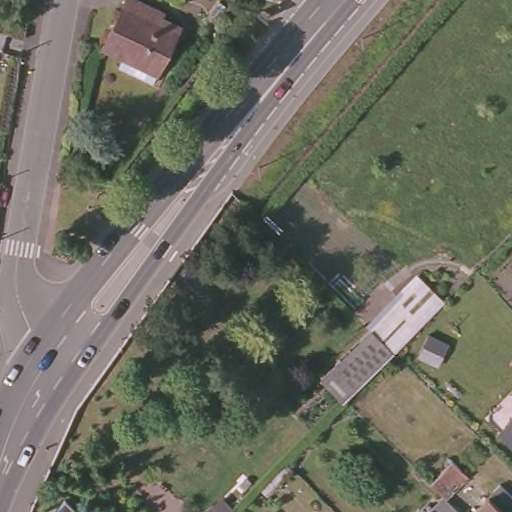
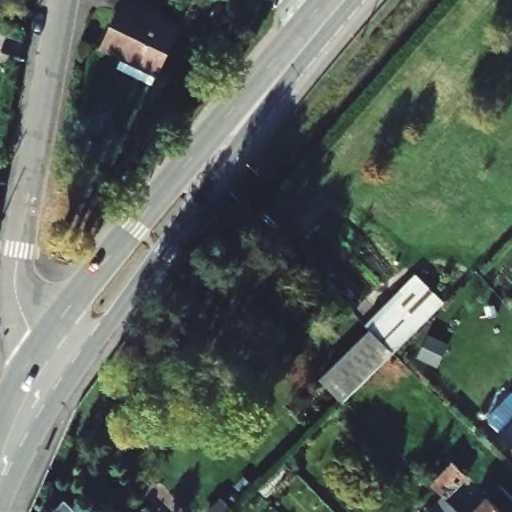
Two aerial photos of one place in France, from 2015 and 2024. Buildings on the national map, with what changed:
unchanged [(179,27),(152,83),(118,67),(123,57),(102,46),(125,0),(134,0),(163,14),(161,17),(179,27)]
unchanged [(417,275),(443,302),(390,352),(368,330),(417,275)]
unchanged [(319,377),(368,330),(390,352),(341,400),(319,377)]
unchanged [(498,432),(512,419),(512,444),(498,432)]
unchanged [(443,497),(429,483),(447,465),(451,461),(465,476),(462,479),(444,497),(459,512),(427,512),(443,497)]
unchanged [(286,463),(293,470),(265,497),(257,489),(264,482),(284,462),(286,463)]
unchanged [(484,502),(489,496),(496,488),(499,486),(512,498),(512,512),(474,512),(484,502)]
unchanged [(59,511),(69,501),(80,512),(60,512),(59,511)]

